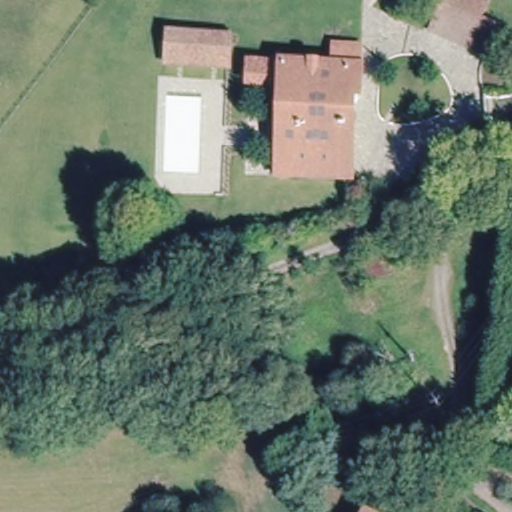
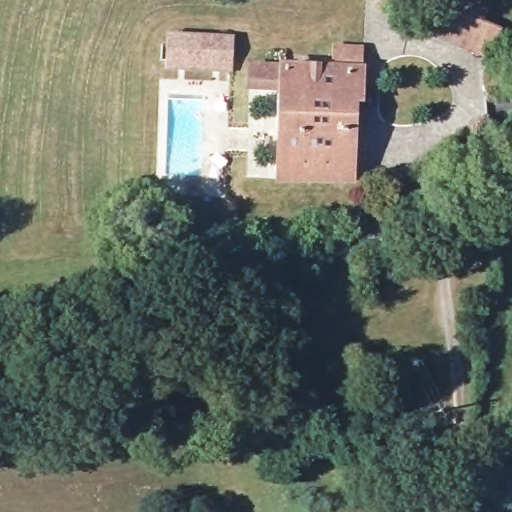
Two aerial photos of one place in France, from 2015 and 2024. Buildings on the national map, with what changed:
unchanged [(444,0),(470,0),(483,5),(476,24),(495,32),(484,59),(429,35),(444,0)]
unchanged [(229,39),(228,64),(167,61),(168,36),(229,39)]
unchanged [(279,179),(283,91),(250,89),(251,65),(335,69),(336,48),(360,49),(359,70),(361,70),(360,98),(354,99),(351,181),(279,179)]
unchanged [(418,262),(372,282),(360,246),(406,224),(418,262)]

